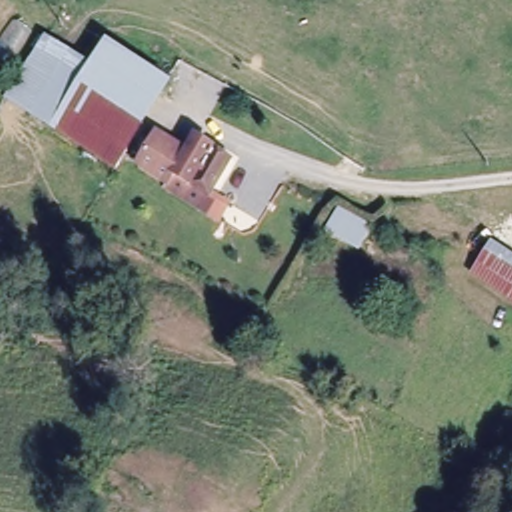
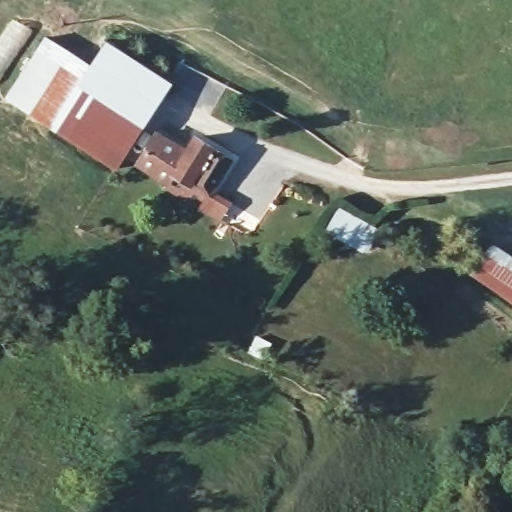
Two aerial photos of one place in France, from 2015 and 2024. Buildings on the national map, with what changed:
unchanged [(115,173),(50,127),(107,31),(176,74),(115,173)]
unchanged [(43,109),(12,88),(45,39),(76,56),(43,109)]
unchanged [(203,199),(138,164),(160,125),(187,142),(193,129),(232,151),(203,199)]
unchanged [(374,227),(358,252),(323,231),(340,205),(374,227)]
unchanged [(512,254),(512,302),(471,275),(492,241),(512,254)]

